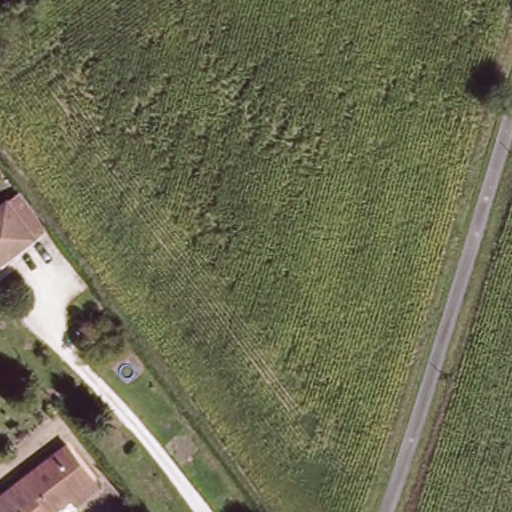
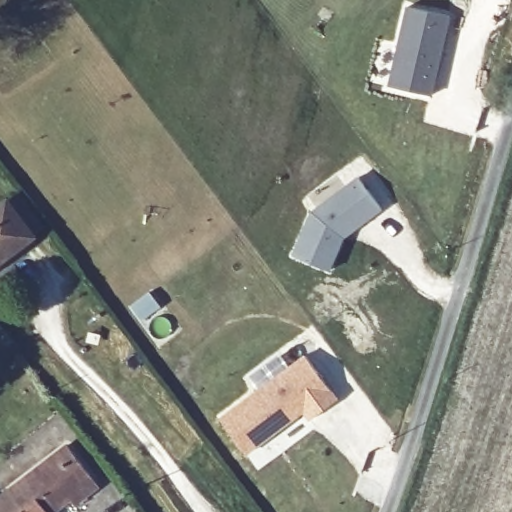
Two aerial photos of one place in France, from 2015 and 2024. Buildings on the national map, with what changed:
new [(407,7),(450,16),(432,94),(389,85),(407,7)]
new [(312,211),(357,178),(382,210),(343,239),(331,269),(293,254),(312,211)]
unchanged [(40,237),(0,267),(0,211),(12,202),(40,237)]
new [(305,354),(339,399),(311,419),(304,411),(247,454),(221,417),(305,354)]
unchanged [(2,501),(61,457),(84,491),(89,497),(75,507),(71,500),(54,512),(11,512),(2,501)]

